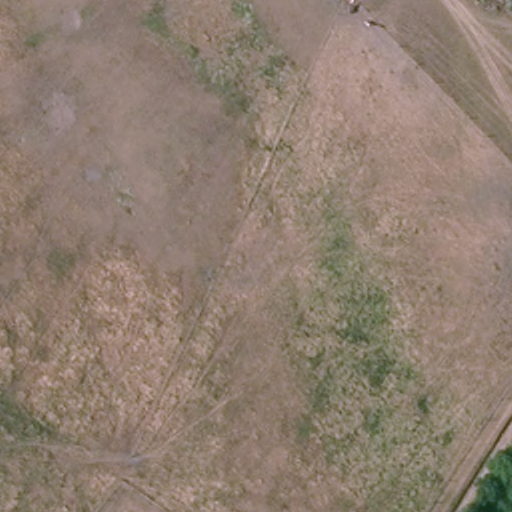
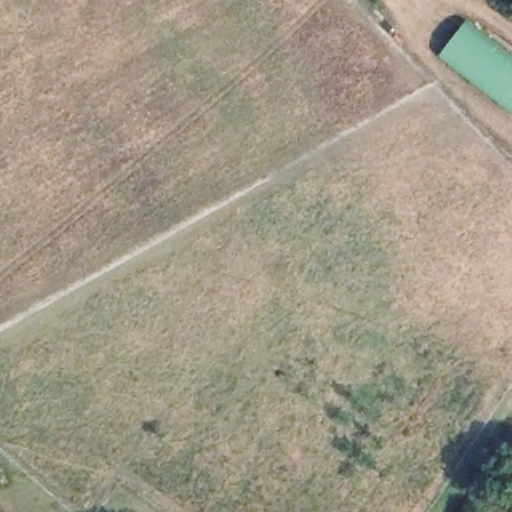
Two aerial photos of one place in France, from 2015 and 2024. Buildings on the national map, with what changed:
new [(512,114),(438,58),(467,20),(512,55),(512,114)]

